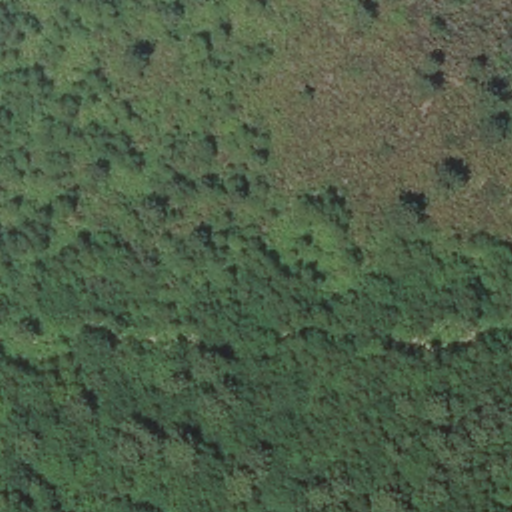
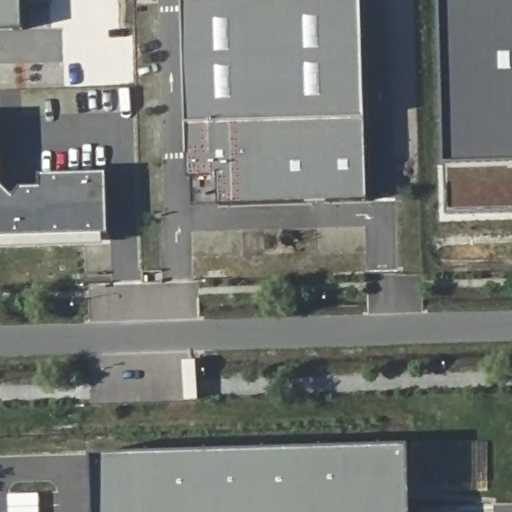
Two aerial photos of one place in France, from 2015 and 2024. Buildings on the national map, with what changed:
new [(0,27),(0,0),(27,0),(27,26),(0,27)]
new [(221,208),(220,177),(192,179),(186,1),(219,0),(363,0),(370,204),(221,208)]
new [(447,214),(441,0),(512,0),(512,213),(447,214)]
new [(5,179),(17,191),(25,184),(44,183),(42,170),(111,168),(114,231),(107,231),(0,235),(0,112),(2,112),(5,179)]
new [(107,241),(0,245),(0,235),(107,231),(107,241)]
new [(419,512),(99,512),(97,450),(416,440),(419,512)]

